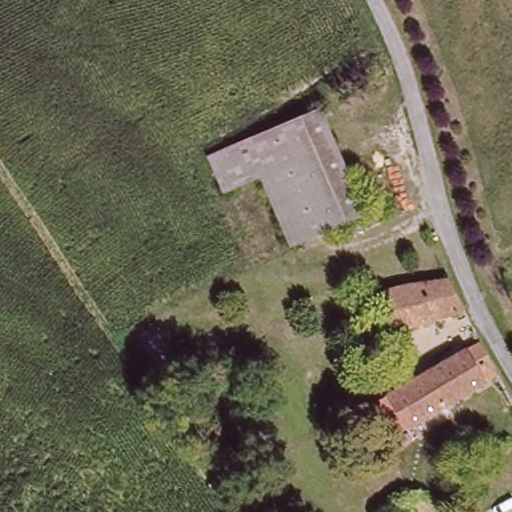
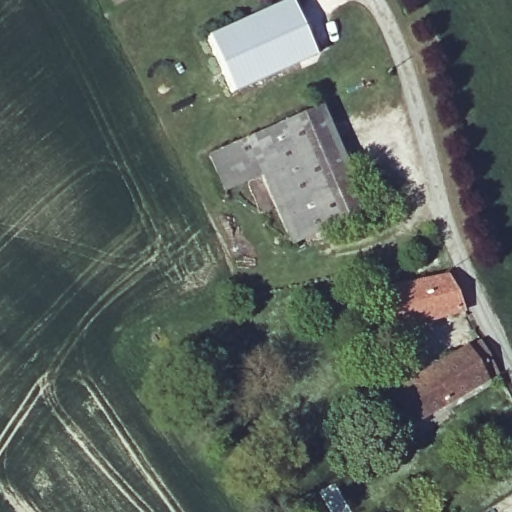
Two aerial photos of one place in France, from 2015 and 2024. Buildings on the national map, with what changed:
new [(287,1),(313,57),(232,95),(207,37),(287,1)]
unchanged [(291,243),(259,176),(222,194),(206,156),(315,110),(361,211),(291,243)]
unchanged [(463,309),(392,333),(379,293),(425,280),(430,278),(446,278),(462,308),(463,309)]
unchanged [(402,418),(383,427),(368,394),(480,340),(498,376),(441,400),(402,418)]

